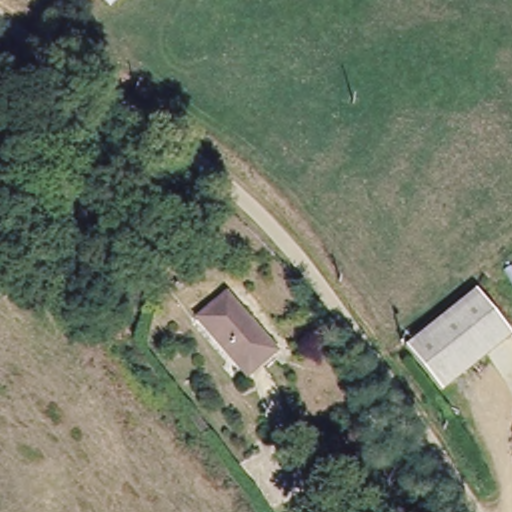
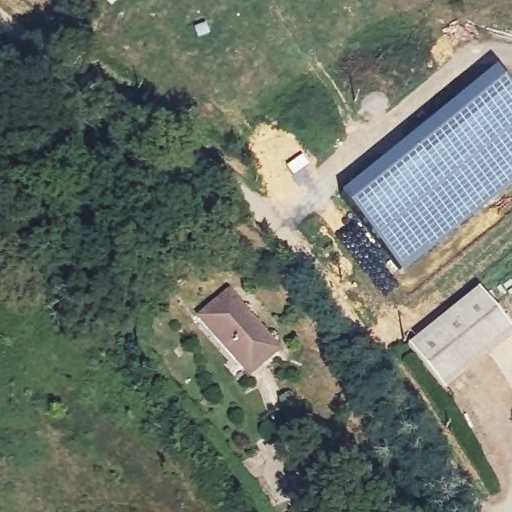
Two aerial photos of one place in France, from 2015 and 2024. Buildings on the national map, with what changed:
new [(493,70),(512,93),(512,182),(401,272),(341,194),(493,70)]
unchanged [(245,372),(197,317),(225,290),(276,345),(245,372)]
unchanged [(444,393),(406,351),(472,290),(511,332),(444,393)]

